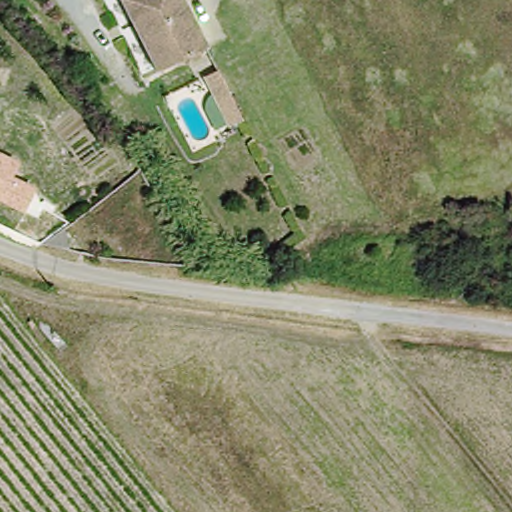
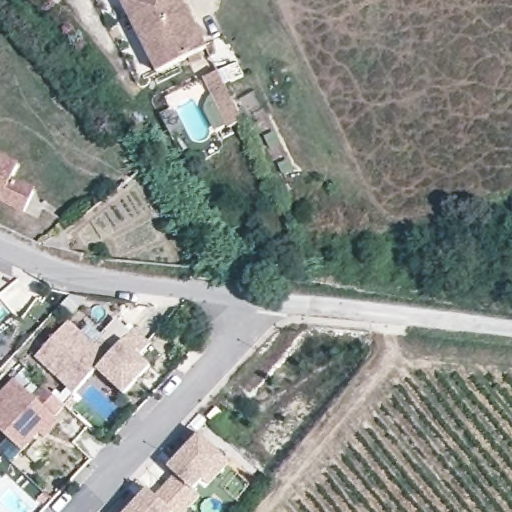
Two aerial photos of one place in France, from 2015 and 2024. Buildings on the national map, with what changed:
unchanged [(121,0),(170,0),(197,55),(149,78),(113,4),(121,0)]
unchanged [(226,121),(203,73),(217,66),(240,115),(226,121)]
unchanged [(21,161),(12,177),(37,188),(25,214),(0,202),(0,152),(21,161)]
new [(76,309),(102,333),(109,325),(121,336),(81,379),(44,344),(76,309)]
new [(125,339),(135,329),(151,343),(140,354),(150,365),(124,394),(98,368),(94,365),(121,336),(125,339)]
new [(41,432),(36,427),(29,434),(0,407),(0,385),(20,364),(39,382),(51,369),(72,389),(51,411),(57,416),(41,432)]
new [(209,484),(202,478),(193,489),(199,497),(184,512),(127,512),(148,489),(154,495),(175,474),(168,469),(200,434),(223,457),(230,463),(209,484)]

